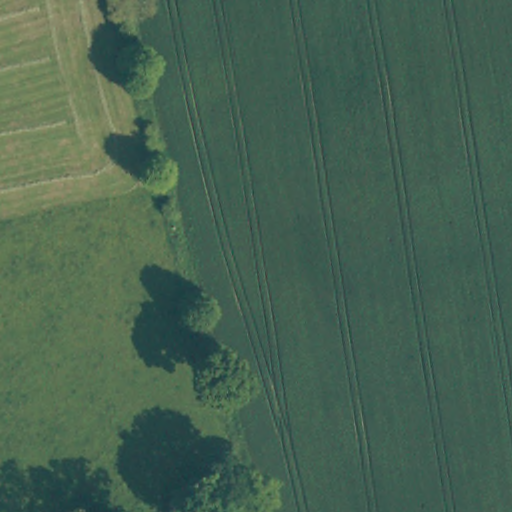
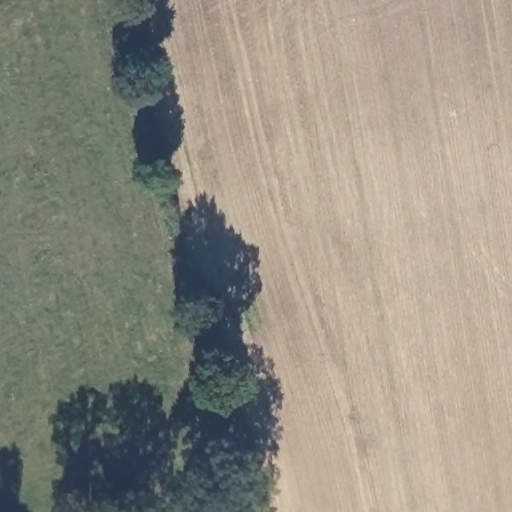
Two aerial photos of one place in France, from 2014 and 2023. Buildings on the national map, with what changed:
[]

